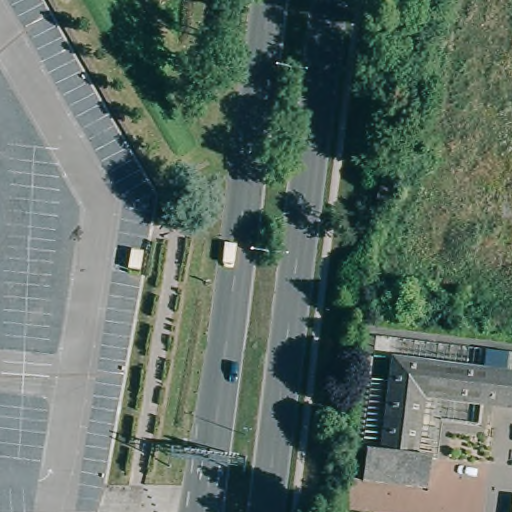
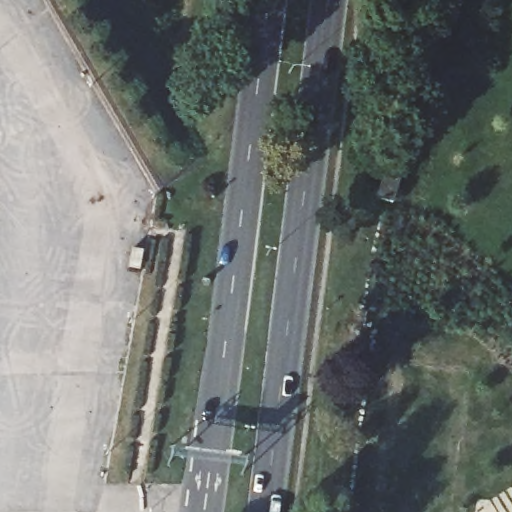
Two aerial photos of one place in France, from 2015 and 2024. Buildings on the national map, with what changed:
unchanged [(397,177),(392,202),(375,199),(382,173),(397,177)]
demolished [(412,339),(512,352),(512,404),(478,400),(475,421),(439,417),(435,457),(429,457),(425,486),(362,478),(365,450),(362,449),(370,375),(391,378),(394,357),(374,355),(375,342),(375,341),(407,339),(412,339)]

